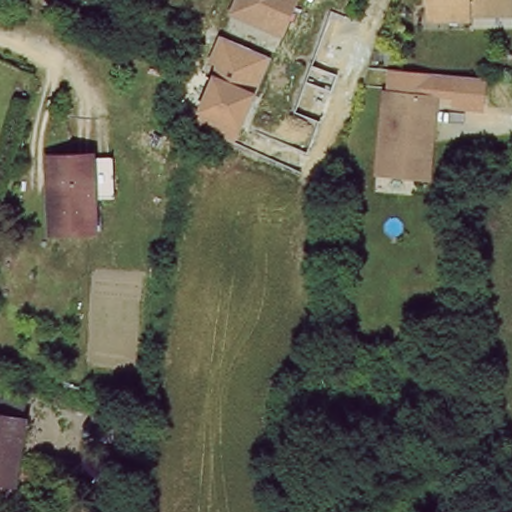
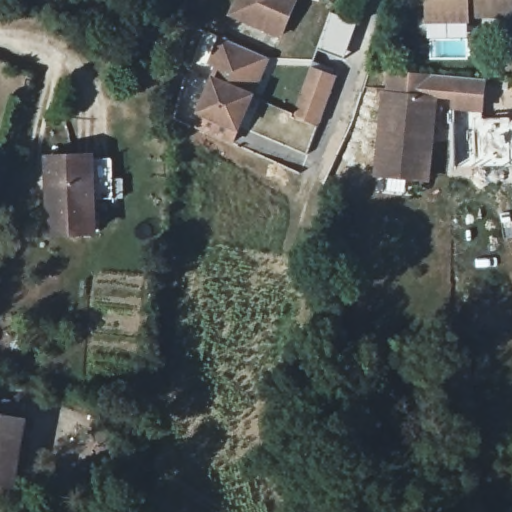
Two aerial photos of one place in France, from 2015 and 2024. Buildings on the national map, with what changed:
unchanged [(233,12),(239,0),(299,0),(284,35),(233,12)]
unchanged [(427,11),(425,0),(512,0),(512,6),(468,14),(469,19),(429,25),(427,11)]
unchanged [(235,145),(193,127),(216,66),(208,62),(219,36),(270,59),(235,145)]
new [(312,62),(338,72),(319,119),(294,109),(312,62)]
unchanged [(389,65),(489,79),(487,107),(446,104),(448,90),(384,86),(389,65)]
unchanged [(384,86),(448,90),(446,104),(434,190),(369,180),(373,86),(384,86)]
unchanged [(97,236),(51,237),(50,200),(50,161),(58,161),(96,160),(97,236)]
unchanged [(0,485),(0,416),(28,422),(14,488),(0,485)]

